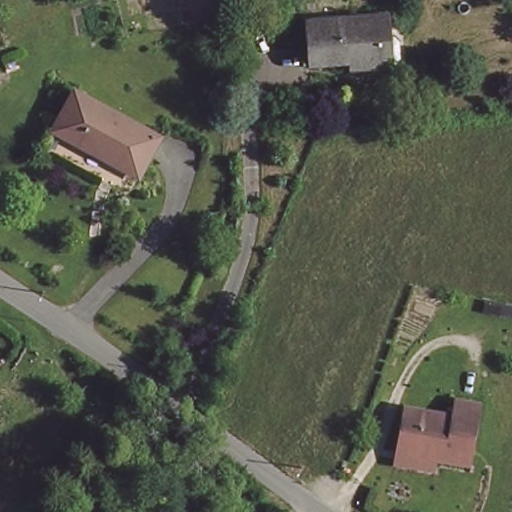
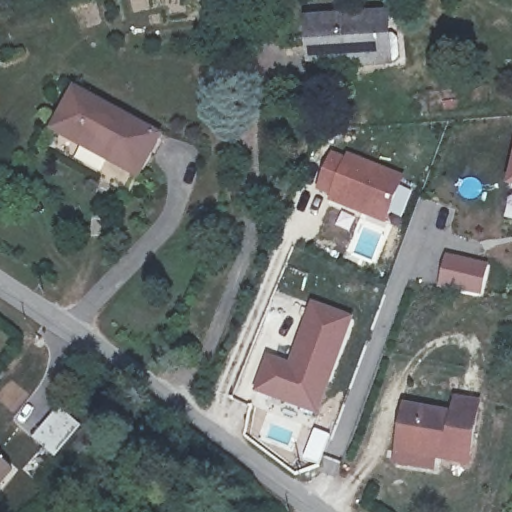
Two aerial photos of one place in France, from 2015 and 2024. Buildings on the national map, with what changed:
unchanged [(354,65),(351,56),(312,62),(306,24),(379,15),(382,33),(397,34),(399,65),(387,65),(387,62),(378,63),(354,65)]
unchanged [(137,182),(59,121),(80,87),(158,149),(137,182)]
new [(330,197),(315,191),(331,152),(345,158),(347,154),(404,177),(385,225),(328,202),(330,197)]
new [(509,189),(512,175),(512,190),(509,189)]
new [(439,287),(447,257),(487,266),(481,297),(439,287)]
new [(272,363),(290,371),(296,357),(290,355),(314,303),(350,319),(309,411),(260,389),(272,363)]
unchanged [(396,463),(404,404),(452,411),(455,393),(482,397),(471,465),(436,459),(436,469),(396,463)]
new [(58,407),(80,426),(55,457),(33,438),(58,407)]
new [(0,490),(0,463),(13,474),(0,490)]

